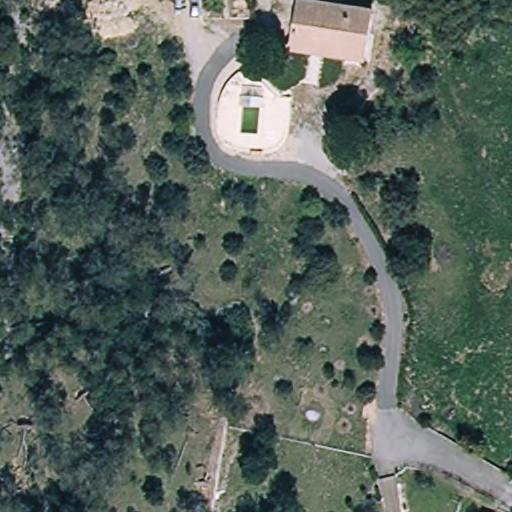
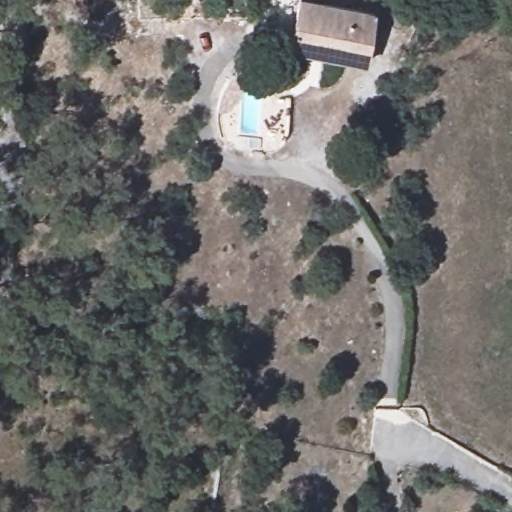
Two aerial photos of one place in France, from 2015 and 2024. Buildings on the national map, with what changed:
unchanged [(300,4),(375,16),(367,69),(290,56),(300,4)]

